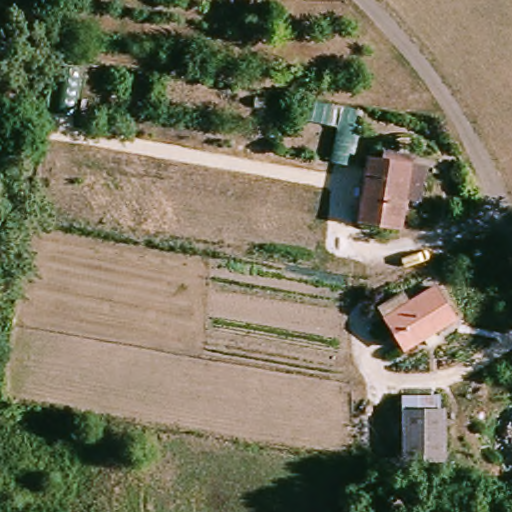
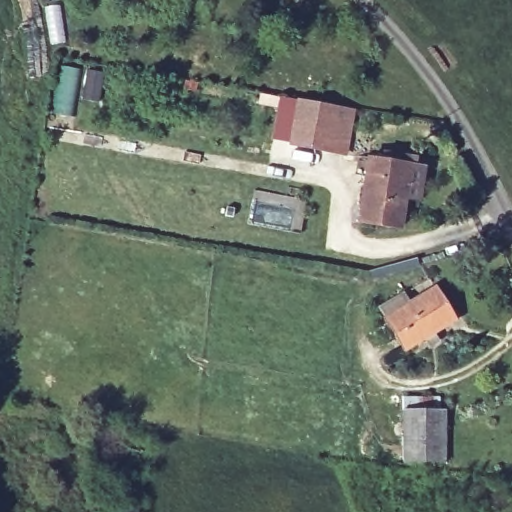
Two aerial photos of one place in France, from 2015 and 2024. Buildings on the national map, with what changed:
new [(356,110),(347,156),(288,145),(290,142),(272,139),(281,98),(356,110)]
demolished [(318,121),(368,127),(366,141),(317,133),(318,121)]
unchanged [(362,222),(373,161),(412,167),(402,229),(362,222)]
unchanged [(402,301),(410,317),(438,301),(451,326),(401,353),(380,313),(402,301)]
unchanged [(430,401),(431,416),(442,416),(441,463),(399,464),(400,418),(411,418),(411,401),(430,401)]

